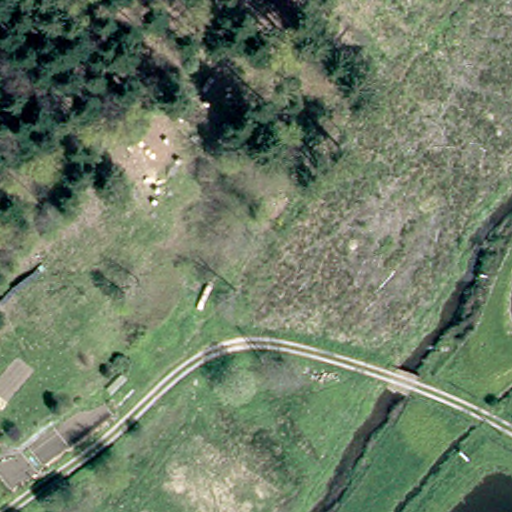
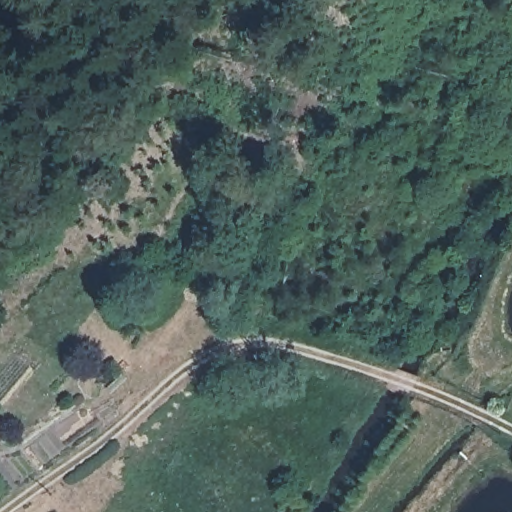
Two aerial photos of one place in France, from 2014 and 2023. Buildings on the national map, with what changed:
[]

